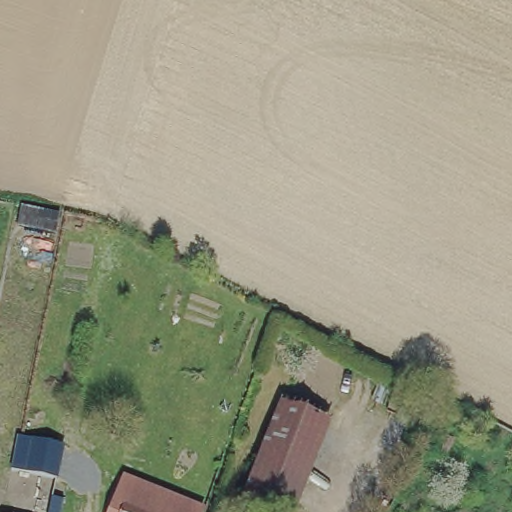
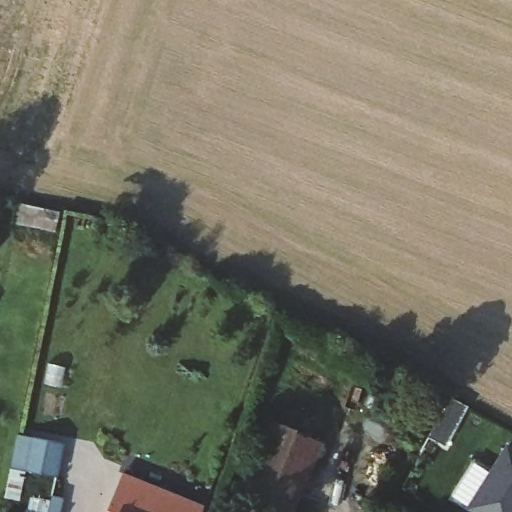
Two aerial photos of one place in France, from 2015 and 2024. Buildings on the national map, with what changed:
unchanged [(462,413),(451,435),(433,425),(445,404),(462,413)]
unchanged [(304,473),(288,512),(267,512),(241,501),(273,423),(317,441),(304,473)]
unchanged [(65,443),(57,477),(11,468),(19,433),(65,443)]
new [(507,444),(512,447),(512,512),(471,512),(466,509),(507,444)]
unchanged [(116,495),(109,492),(118,469),(199,502),(195,512),(157,512),(116,495)]
unchanged [(41,489),(54,492),(48,512),(36,512),(41,489)]
unchanged [(109,492),(116,495),(157,512),(101,512),(109,492)]

